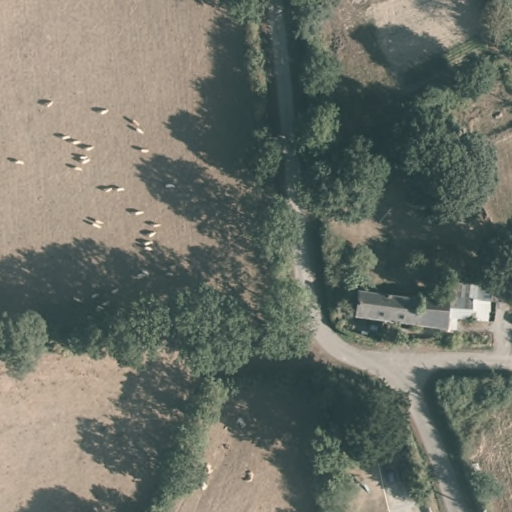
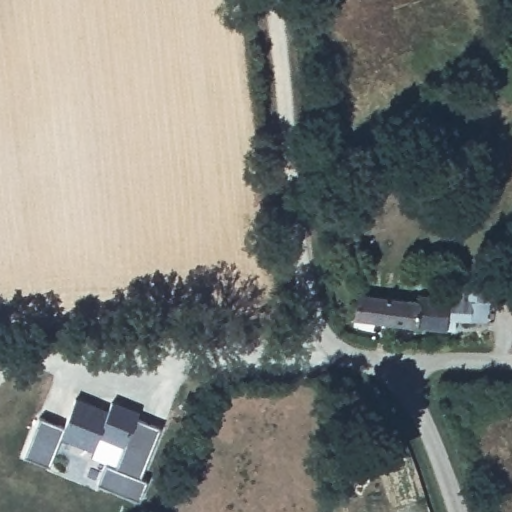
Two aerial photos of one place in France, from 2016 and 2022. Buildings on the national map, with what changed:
unchanged [(482,323),(447,320),(447,330),(354,320),(357,293),(420,300),(422,294),(449,297),(452,282),(475,285),(475,300),(495,302),(493,315),(483,313),(482,323)]
new [(62,430),(74,402),(94,410),(106,415),(110,405),(137,416),(135,421),(159,430),(139,480),(146,483),(137,504),(95,487),(103,466),(113,470),(122,448),(97,438),(92,452),(60,440),(47,470),(22,460),(38,420),(62,430)]

